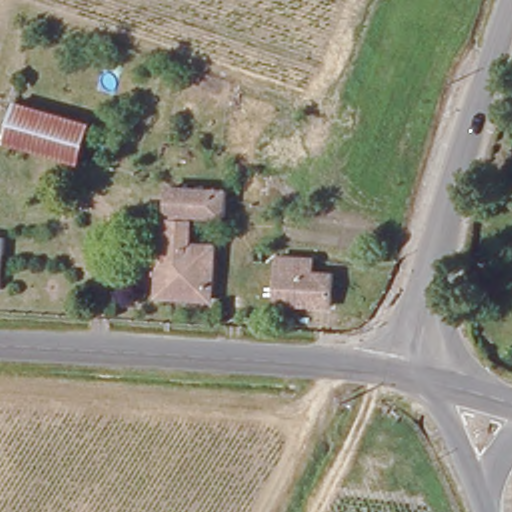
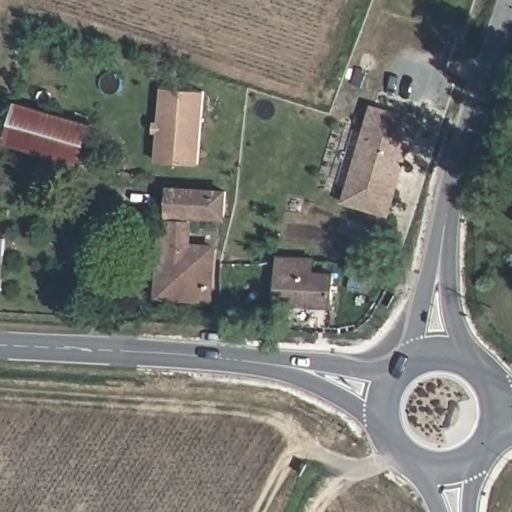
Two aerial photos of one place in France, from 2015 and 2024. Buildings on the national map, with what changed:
new [(202,163),(156,159),(158,133),(154,133),(155,121),(159,121),(162,86),(207,89),(202,163)]
unchanged [(13,101),(90,124),(80,161),(4,140),(13,101)]
new [(342,202),(371,103),(419,118),(389,215),(342,202)]
unchanged [(155,299),(158,219),(164,219),(166,187),(227,190),(224,222),(194,220),(194,244),(217,245),(212,304),(155,299)]
unchanged [(0,236),(4,236),(2,293),(0,292),(0,236)]
unchanged [(275,306),(277,262),(313,263),(313,275),(331,277),(329,309),(275,306)]

